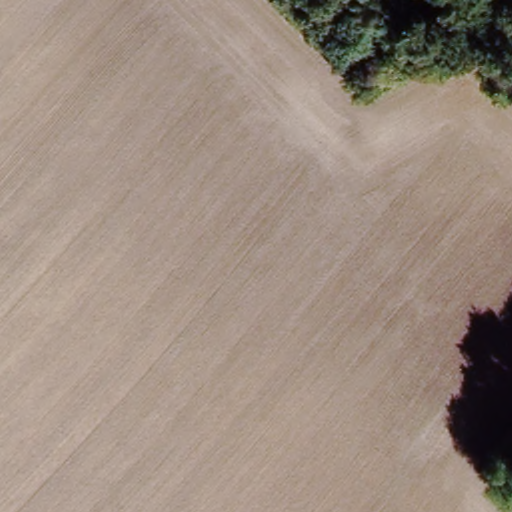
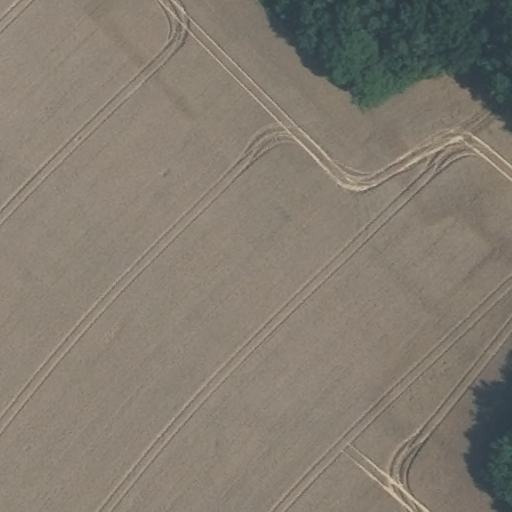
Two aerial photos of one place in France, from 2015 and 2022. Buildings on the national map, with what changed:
[]

